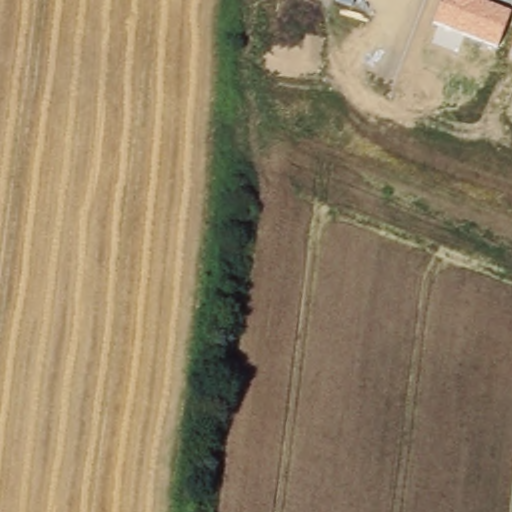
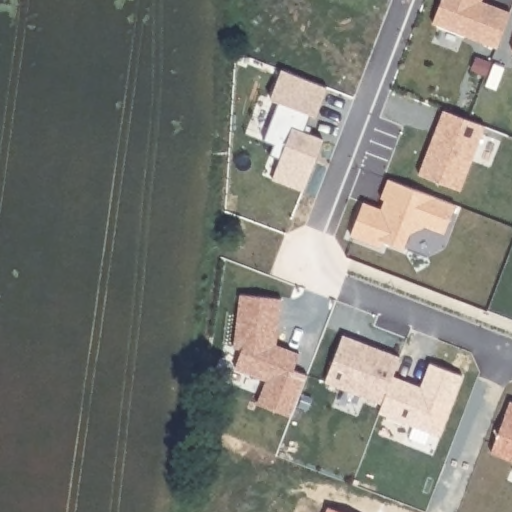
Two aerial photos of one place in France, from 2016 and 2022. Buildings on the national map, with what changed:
unchanged [(483,0),(482,2),(510,13),(497,48),(435,21),(443,0),(483,0)]
new [(268,98),(280,69),(325,86),(314,115),(309,114),(305,124),(310,126),(307,133),(321,139),(301,190),(271,179),(278,158),(268,154),(272,144),(262,140),(276,101),(268,98)]
new [(442,109),(483,125),(458,189),(417,174),(442,109)]
new [(445,233),(426,227),(408,234),(402,248),(382,239),(380,247),(351,235),(363,202),(382,208),(385,199),(381,199),(388,179),(454,204),(445,233)]
new [(280,298),(275,344),(298,353),(295,361),(292,369),(306,374),(290,417),(256,403),(265,379),(233,368),(240,348),(232,348),(239,294),(280,298)]
new [(357,341),(380,349),(398,357),(391,376),(381,404),(323,382),(341,335),(357,341)]
new [(391,376),(408,383),(420,387),(428,363),(461,376),(438,436),(377,412),(381,404),(391,376)]
new [(512,401),(512,460),(491,452),(510,401),(512,401)]

